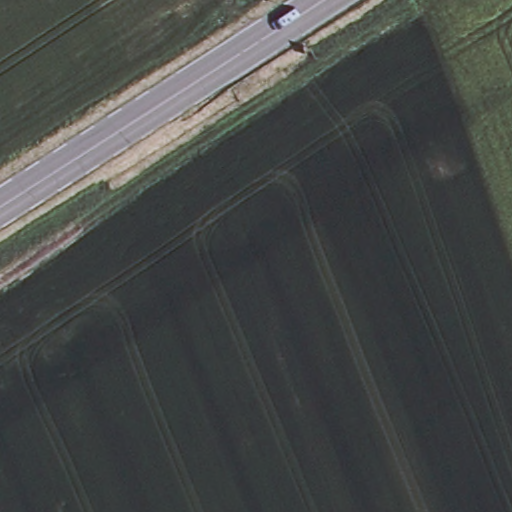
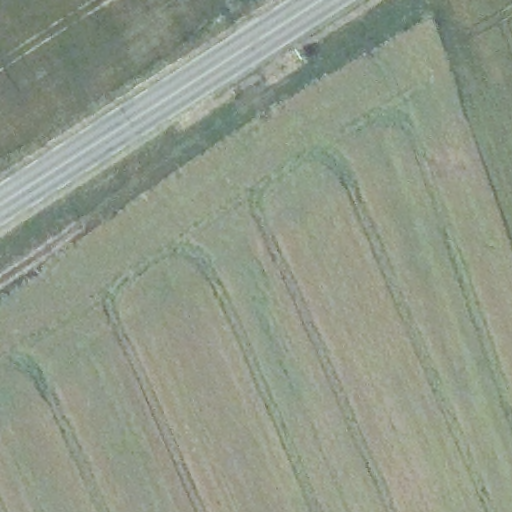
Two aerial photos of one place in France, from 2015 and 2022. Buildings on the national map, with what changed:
[]

